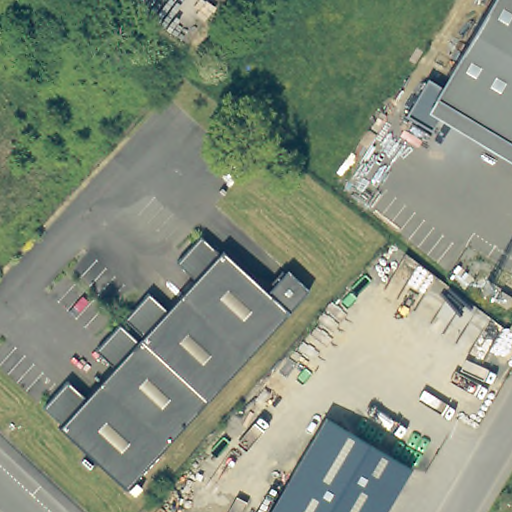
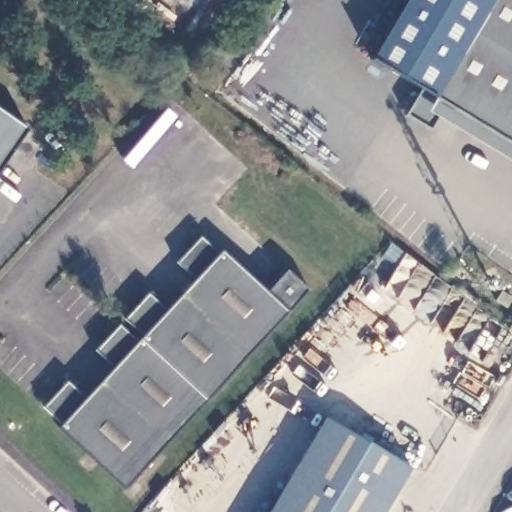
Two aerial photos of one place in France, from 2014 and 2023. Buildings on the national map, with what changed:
new [(406,0),(491,0),(438,89),(425,80),(421,87),(371,57),(406,0)]
unchanged [(430,134),(402,119),(425,80),(438,89),(491,0),(512,0),(512,148),(445,107),(430,134)]
new [(29,128),(0,170),(0,109),(29,128)]
unchanged [(54,425),(57,421),(41,406),(62,383),(80,399),(107,371),(91,351),(116,326),(131,343),(138,338),(121,321),(147,293),(165,309),(189,285),(172,267),(197,241),(214,258),(218,253),(262,294),(281,272),(304,294),(283,315),(122,487),(54,425)]
unchanged [(506,305),(497,299),(503,290),(512,296),(506,305)]
unchanged [(512,323),(512,333),(507,329),(512,323)]
unchanged [(323,420),(409,469),(400,485),(384,512),(270,512),(315,435),(323,420)]

